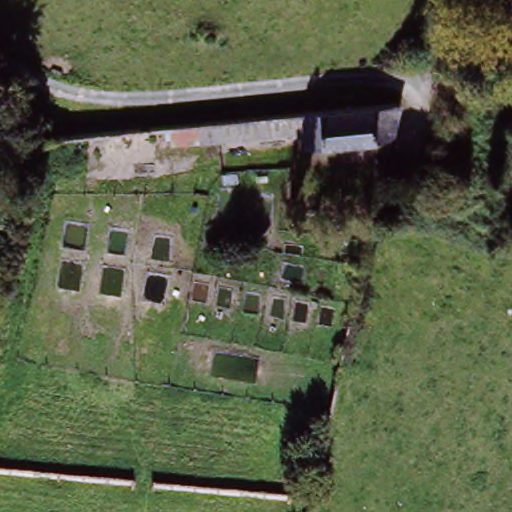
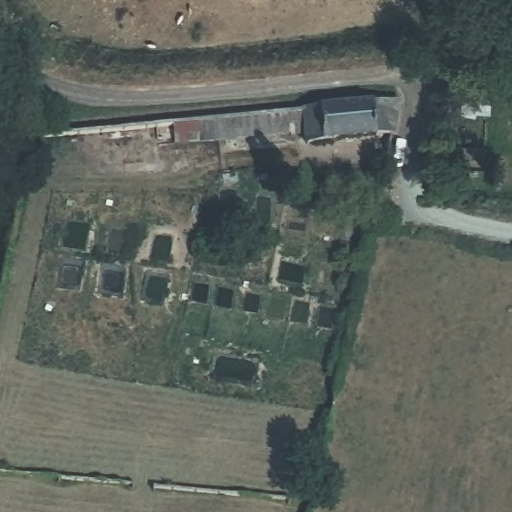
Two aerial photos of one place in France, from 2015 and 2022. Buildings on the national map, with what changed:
unchanged [(380,102),(377,132),(303,137),(303,129),(189,141),(163,144),(161,123),(380,102)]

